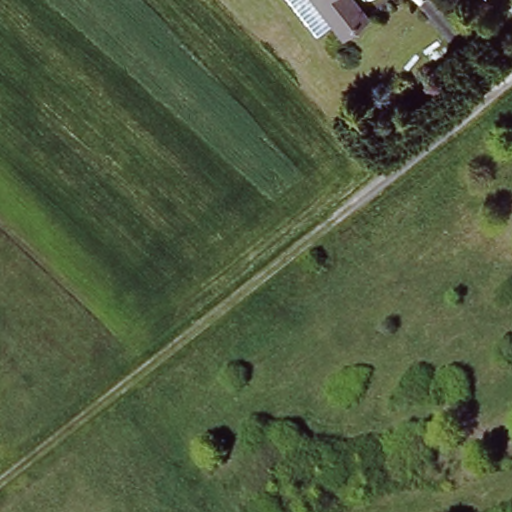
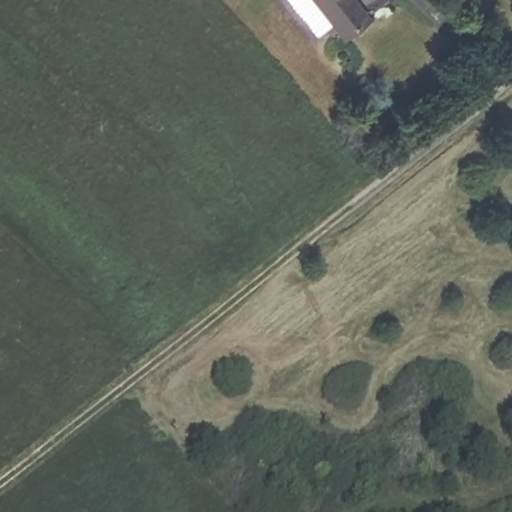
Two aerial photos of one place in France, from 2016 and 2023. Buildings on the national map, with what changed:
unchanged [(376,14),(351,32),(342,19),(328,27),(308,0),(364,0),(376,14)]

